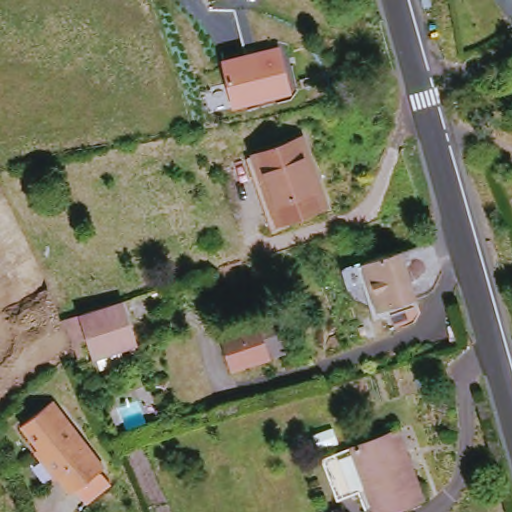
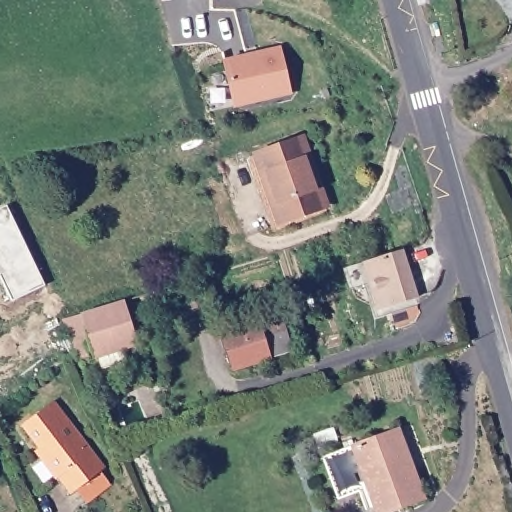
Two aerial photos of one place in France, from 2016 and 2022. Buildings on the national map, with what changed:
unchanged [(221,59),(280,45),(293,94),(232,108),(221,59)]
unchanged [(272,224),(250,156),(297,141),(320,207),(272,224)]
new [(45,286),(12,302),(0,277),(0,210),(8,206),(45,286)]
unchanged [(386,307),(372,260),(405,250),(420,295),(386,307)]
unchanged [(122,301),(134,342),(93,355),(89,341),(82,343),(86,357),(77,361),(64,318),(122,301)]
unchanged [(233,361),(228,346),(222,348),(217,331),(273,315),(284,346),(233,361)]
unchanged [(100,473),(68,497),(55,481),(52,481),(38,463),(42,457),(20,427),(52,405),(100,473)]
unchanged [(418,494),(375,510),(367,486),(352,490),(336,445),(393,425),(418,494)]

